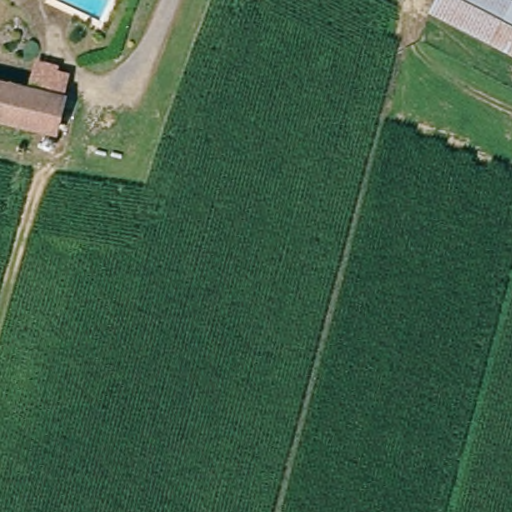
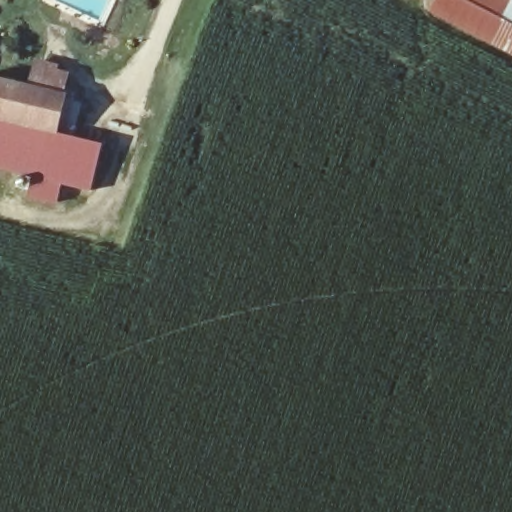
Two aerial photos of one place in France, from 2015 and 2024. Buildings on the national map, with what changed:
unchanged [(512,56),(430,19),(440,0),(488,0),(512,11),(512,56)]
new [(63,98),(28,87),(35,57),(59,62),(57,67),(70,71),(63,98)]
unchanged [(69,100),(59,133),(0,116),(0,80),(69,100)]
new [(61,183),(56,200),(29,194),(34,175),(0,167),(0,116),(59,133),(101,144),(90,189),(61,183)]

